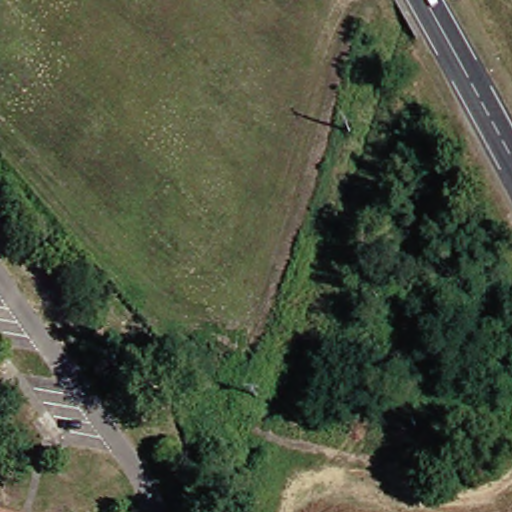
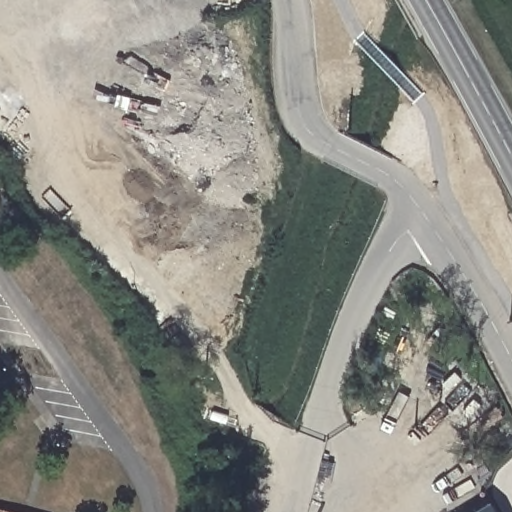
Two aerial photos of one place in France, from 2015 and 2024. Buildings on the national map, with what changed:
new [(477,512),(493,502),(499,512),(477,512)]

